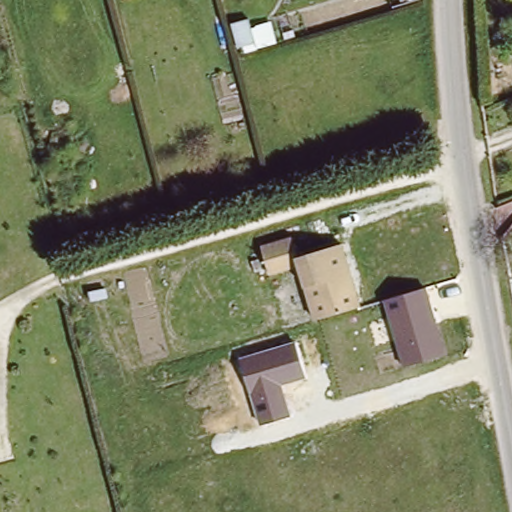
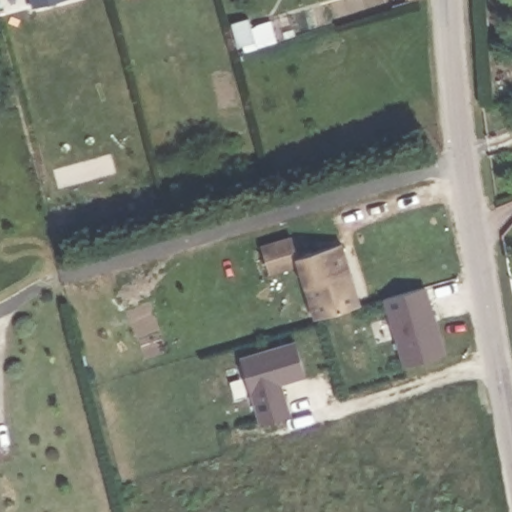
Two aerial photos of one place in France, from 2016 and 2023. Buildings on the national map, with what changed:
new [(31,0),(63,0),(33,8),(31,0)]
unchanged [(422,0),(422,1),(407,0),(406,0),(422,0)]
unchanged [(244,22),(248,30),(266,22),(273,42),(243,51),(241,46),(236,47),(229,28),(244,22)]
unchanged [(291,235),(296,255),(341,242),(360,306),(313,321),(296,264),(269,275),(260,245),(291,235)]
unchanged [(383,301),(426,287),(446,355),(403,366),(383,301)]
unchanged [(241,358),(296,341),(306,376),(282,385),(291,416),(259,426),(241,358)]

